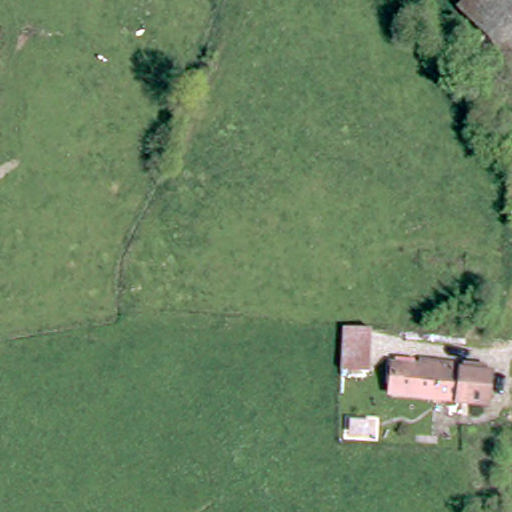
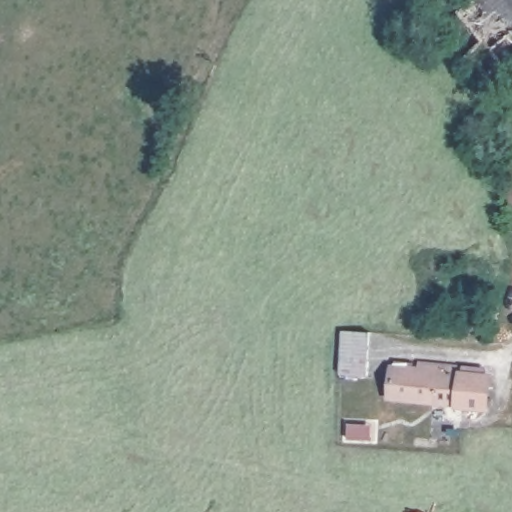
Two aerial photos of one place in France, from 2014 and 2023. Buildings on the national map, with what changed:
unchanged [(468,54),(484,42),(459,11),(473,0),(512,0),(512,59),(487,79),(468,54)]
unchanged [(369,373),(339,372),(341,331),(341,330),(369,332),(369,373)]
unchanged [(484,403),(393,407),(392,375),(424,373),(424,365),(461,363),(462,371),(483,370),(484,403)]

